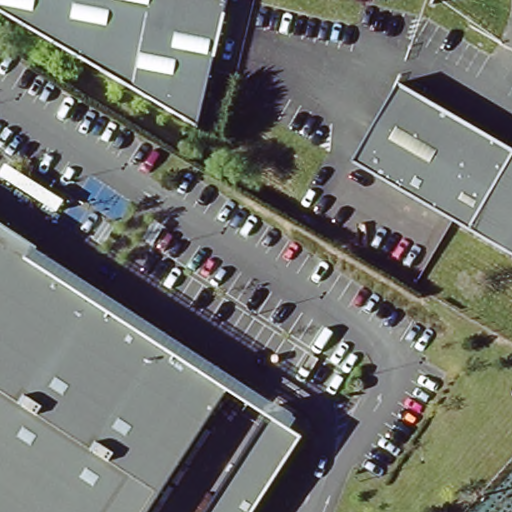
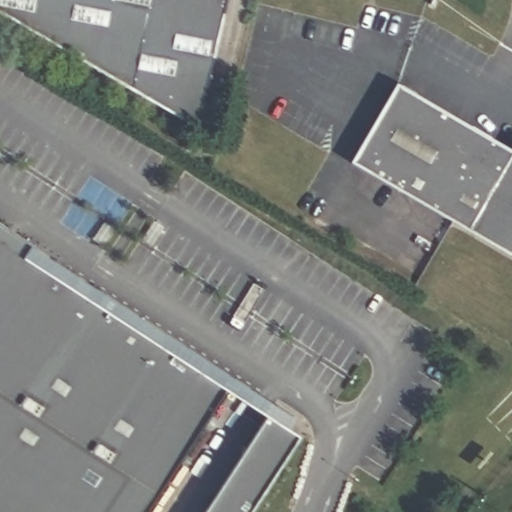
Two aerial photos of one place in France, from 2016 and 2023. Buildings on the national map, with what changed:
unchanged [(0,9),(0,0),(227,0),(200,126),(0,9)]
unchanged [(407,87),(512,147),(512,248),(364,164),(407,87)]
unchanged [(26,259),(226,389),(147,512),(0,512),(0,223),(34,245),(26,259)]
unchanged [(302,440),(256,512),(207,512),(266,420),(302,440)]

